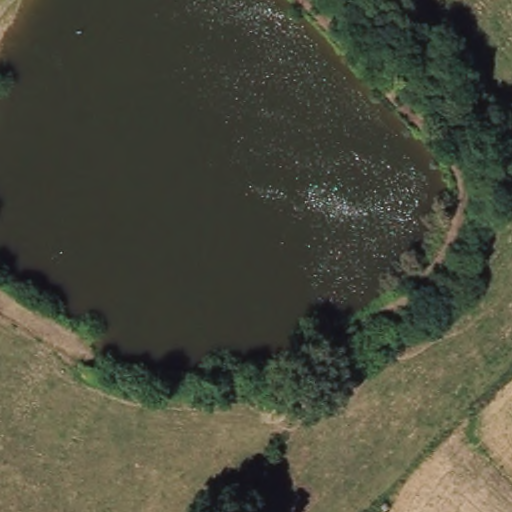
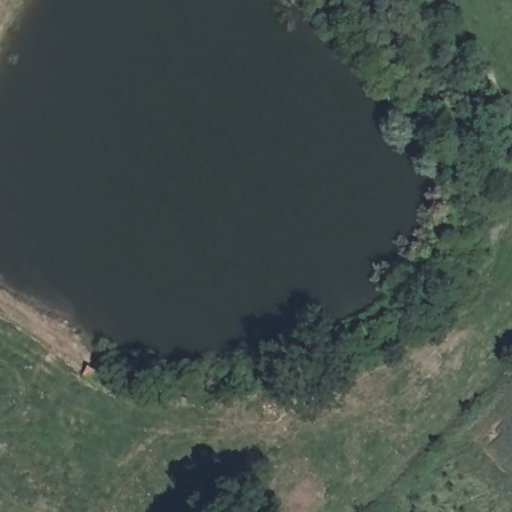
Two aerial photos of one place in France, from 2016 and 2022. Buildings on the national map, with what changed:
unchanged [(96,373),(91,381),(82,376),(87,368),(96,373)]

